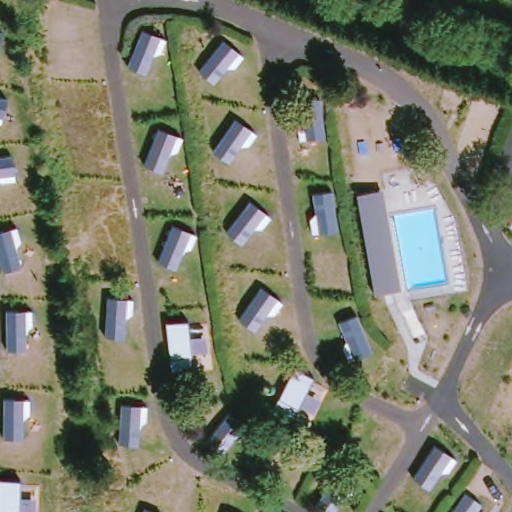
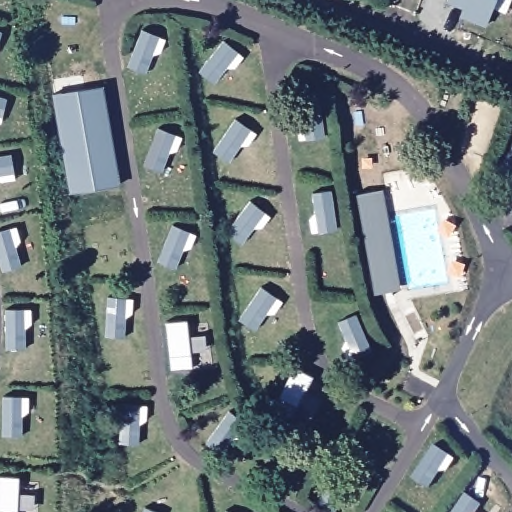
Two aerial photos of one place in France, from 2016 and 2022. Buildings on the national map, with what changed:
new [(462,17),(465,7),(446,0),(493,0),(485,25),(462,17)]
new [(120,185),(70,194),(54,95),(104,86),(120,185)]
unchanged [(384,192),(402,291),(376,296),(358,197),(384,192)]
demolished [(499,414),(503,402),(510,405),(512,398),(512,418),(512,419),(499,414)]

